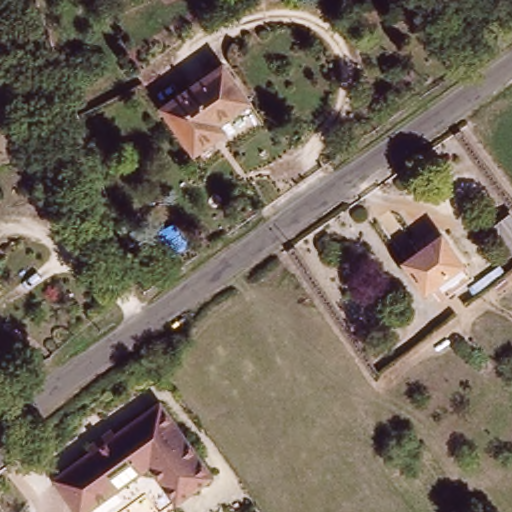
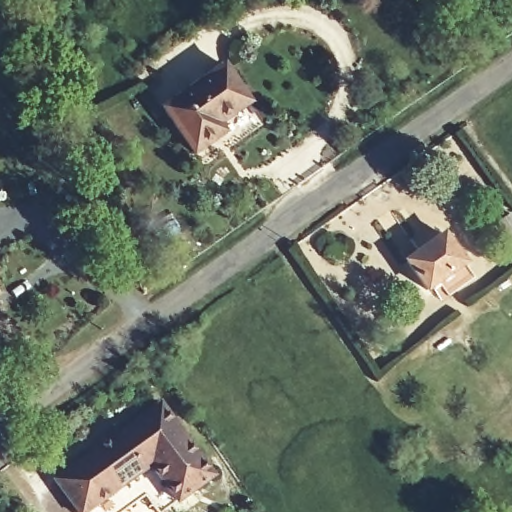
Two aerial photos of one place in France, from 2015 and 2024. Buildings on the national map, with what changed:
unchanged [(220,69),(247,106),(189,148),(162,110),(220,69)]
unchanged [(490,226),(509,215),(512,220),(512,259),(490,226)]
unchanged [(462,265),(427,290),(405,261),(440,236),(462,265)]
unchanged [(149,472),(91,512),(71,512),(50,483),(159,408),(211,484),(174,510),(149,472)]

